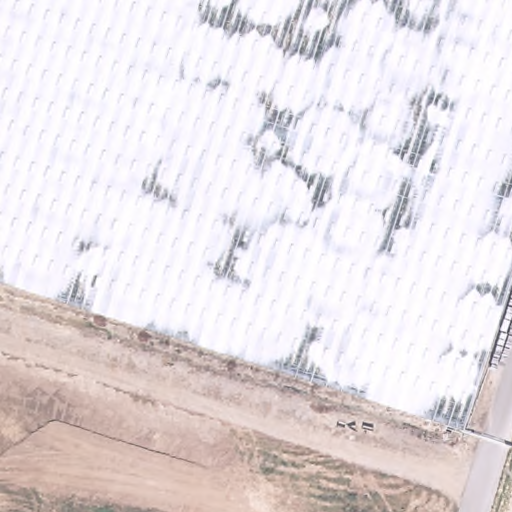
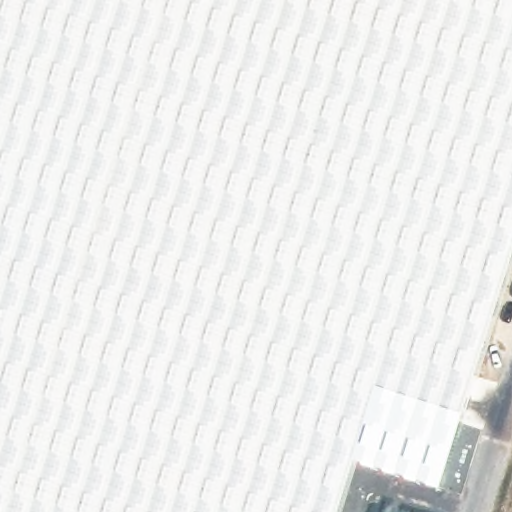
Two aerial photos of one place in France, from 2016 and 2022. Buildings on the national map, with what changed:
unchanged [(0,279),(0,0),(512,0),(512,276),(464,426),(0,279)]
new [(460,425),(441,488),(355,461),(339,512),(0,512),(0,279),(460,425)]

